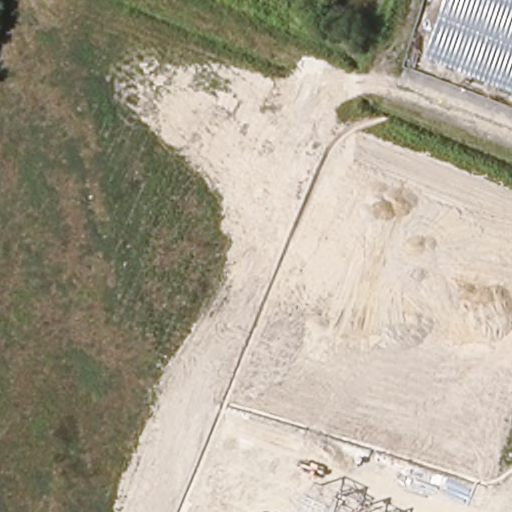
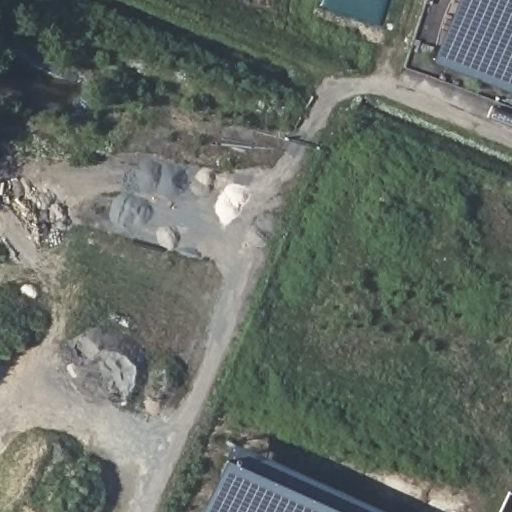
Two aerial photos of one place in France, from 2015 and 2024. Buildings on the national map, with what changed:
unchanged [(455,0),(512,0),(512,90),(433,58),(455,0)]
new [(229,441),(388,512),(197,512),(222,457),(229,441)]

